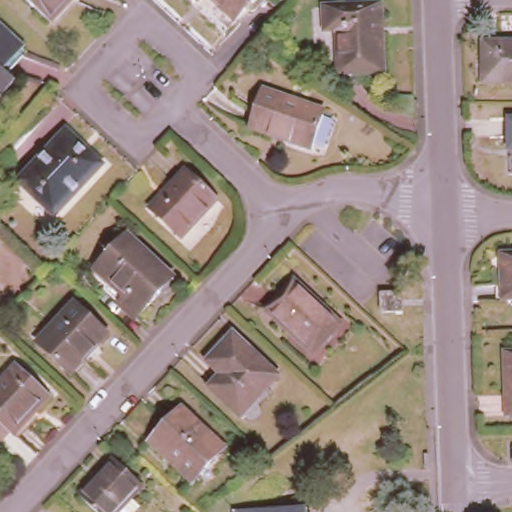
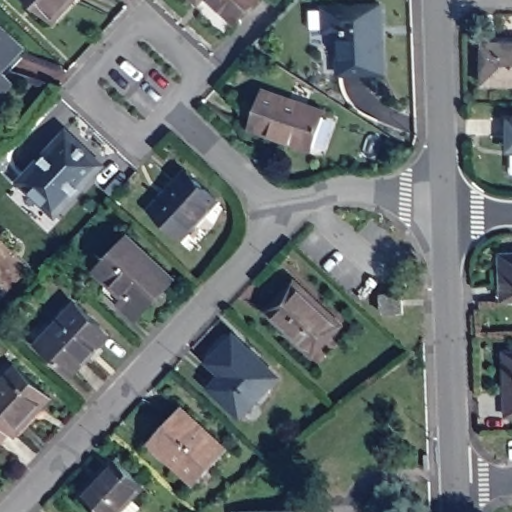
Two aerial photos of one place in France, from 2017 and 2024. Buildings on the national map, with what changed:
unchanged [(27,0),(80,0),(55,26),(27,0)]
unchanged [(196,0),(199,0),(197,1),(196,0)]
unchanged [(214,0),(253,0),(235,20),(214,0)]
unchanged [(338,31),(325,31),(325,9),(382,7),(382,30),(380,30),(383,75),(340,76),(338,31)]
unchanged [(12,85),(0,98),(0,33),(21,53),(0,74),(12,85)]
unchanged [(482,44),(505,43),(505,48),(512,47),(512,85),(482,86),(482,44)]
unchanged [(248,122),(262,83),(325,105),(310,144),(248,122)]
unchanged [(511,169),(512,116),(512,117),(512,169),(511,169)]
unchanged [(54,218),(18,184),(66,134),(102,168),(54,218)]
unchanged [(180,236),(149,207),(185,169),(215,198),(180,236)]
unchanged [(102,261),(131,229),(177,272),(139,312),(123,297),(105,281),(107,279),(95,267),(102,261)]
unchanged [(507,305),(506,256),(512,256),(512,304),(507,305)]
unchanged [(312,356),(267,314),(295,283),(340,326),(312,356)]
unchanged [(382,310),(382,292),(405,291),(404,310),(382,310)]
unchanged [(70,374),(37,342),(75,302),(107,333),(70,374)]
unchanged [(240,409),(210,381),(222,367),(208,354),(233,327),(277,368),(240,409)]
unchanged [(510,421),(508,359),(512,359),(512,421),(510,421)]
unchanged [(41,391),(7,428),(2,424),(0,426),(0,371),(10,361),(41,391)]
unchanged [(195,480),(153,440),(184,408),(225,447),(195,480)]
unchanged [(77,494),(112,457),(140,484),(128,497),(137,505),(129,512),(97,512),(77,494)]
unchanged [(302,512),(229,512),(228,511),(302,507),(302,512)]

